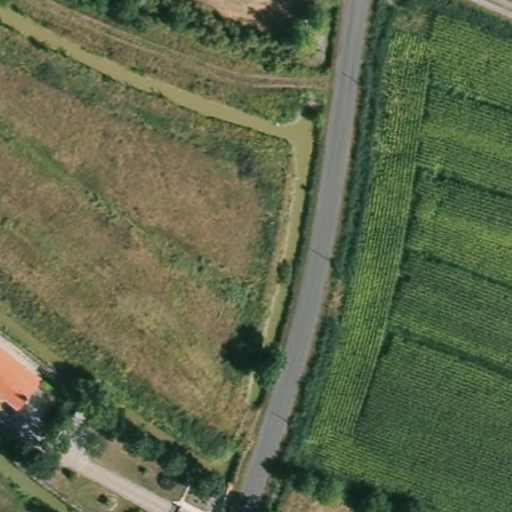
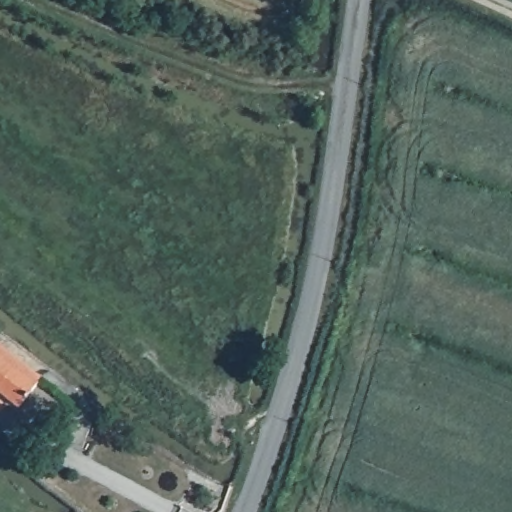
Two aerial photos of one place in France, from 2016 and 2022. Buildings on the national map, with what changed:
unchanged [(19,367),(41,383),(21,409),(0,394),(0,361),(15,372),(19,367)]

